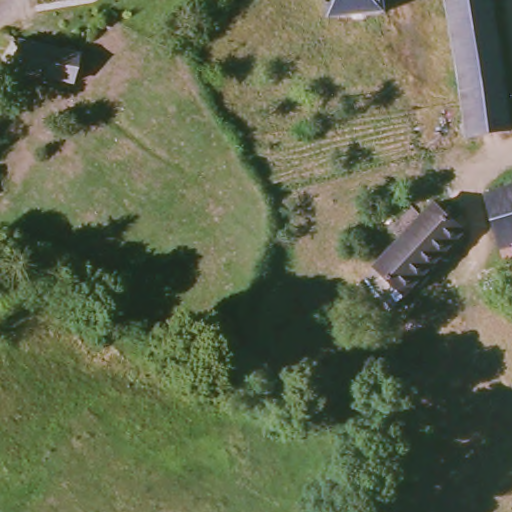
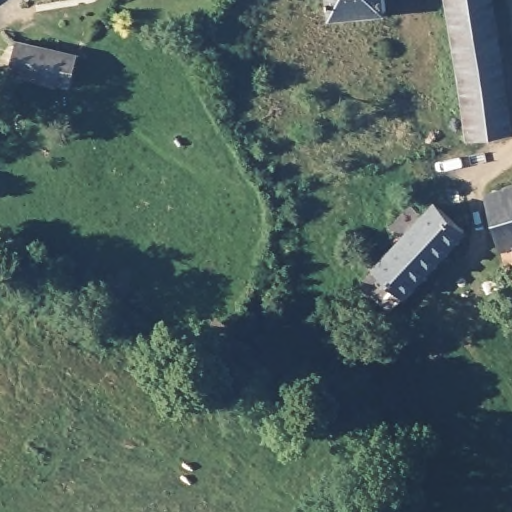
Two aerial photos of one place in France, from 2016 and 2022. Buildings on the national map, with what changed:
unchanged [(331,16),(329,0),(385,0),(385,11),(331,16)]
unchanged [(512,132),(480,138),(459,0),(503,0),(512,56),(512,132)]
unchanged [(68,81),(10,71),(15,40),(73,50),(68,81)]
unchanged [(485,194),(512,185),(512,277),(503,253),(485,194)]
unchanged [(464,231),(389,308),(357,279),(400,236),(423,214),(435,202),(464,231)]

